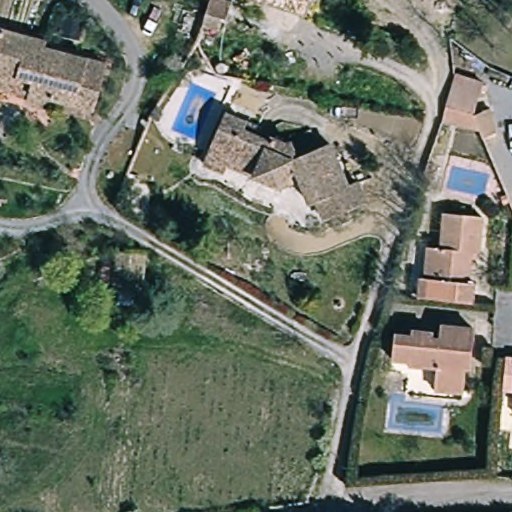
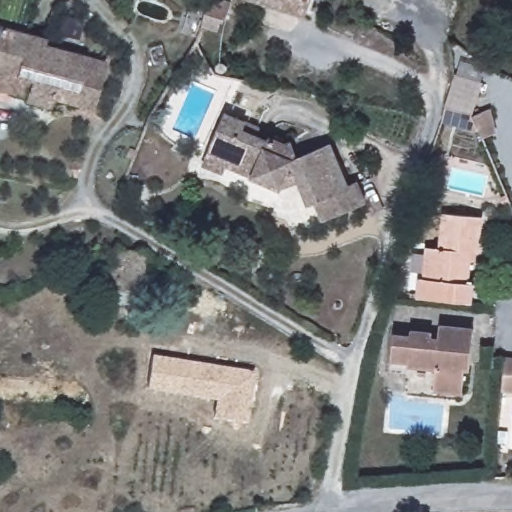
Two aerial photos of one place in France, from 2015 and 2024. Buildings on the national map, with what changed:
unchanged [(210,11),(213,0),(226,0),(236,4),(229,18),(224,16),(220,27),(204,22),(210,11)]
unchanged [(268,0),(312,0),(307,13),(268,0)]
unchanged [(41,44),(43,56),(105,67),(98,105),(60,97),(53,104),(34,102),(0,99),(0,35),(41,44)]
unchanged [(484,144),(479,131),(442,119),(458,74),(486,82),(476,117),(494,109),(502,136),(484,144)]
unchanged [(250,125),(247,135),(273,142),(276,141),(288,145),(293,143),(304,164),(336,149),(354,185),(359,184),(369,206),(330,226),(317,201),(312,204),(297,179),(289,181),(285,190),(261,184),(264,174),(234,165),(229,178),(209,171),(215,159),(229,118),(250,125)]
unchanged [(483,222),(480,252),(472,254),(468,289),(475,291),(474,307),(439,303),(442,286),(422,283),(427,247),(437,249),(441,217),(483,222)]
unchanged [(118,286),(110,285),(112,268),(120,270),(122,254),(147,257),(146,295),(119,292),(118,286)]
unchanged [(444,369),(403,365),(404,361),(393,359),(396,328),(441,333),(443,326),(475,328),(471,371),(470,387),(443,385),(444,369)]
unchanged [(509,351),(512,351),(512,387),(506,387),(509,351)]
new [(247,424),(213,418),(216,399),(147,389),(153,355),(256,372),(247,424)]

